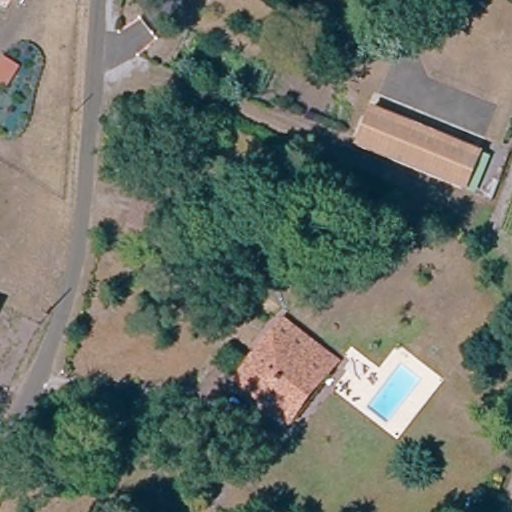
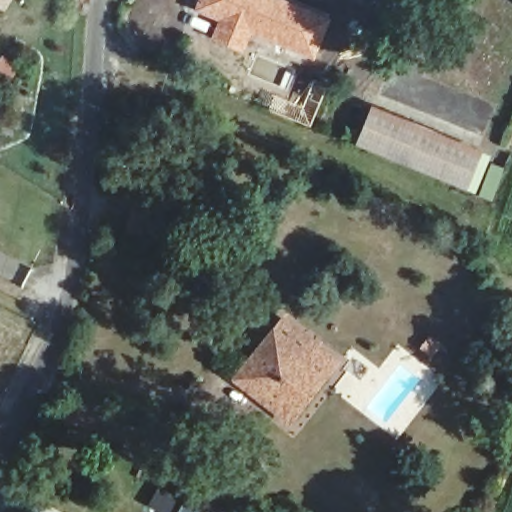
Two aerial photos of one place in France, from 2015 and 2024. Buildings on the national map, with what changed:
unchanged [(5,10),(0,8),(0,0),(11,0),(5,10)]
new [(196,0),(292,0),(330,15),(312,60),(250,35),(242,54),(209,40),(216,21),(192,10),(196,0)]
unchanged [(355,147),(371,105),(486,145),(470,190),(355,147)]
unchanged [(152,181),(177,186),(168,239),(143,234),(152,181)]
unchanged [(226,391),(287,322),(340,365),(281,441),(226,391)]
new [(217,504),(213,512),(176,512),(189,489),(217,504)]

